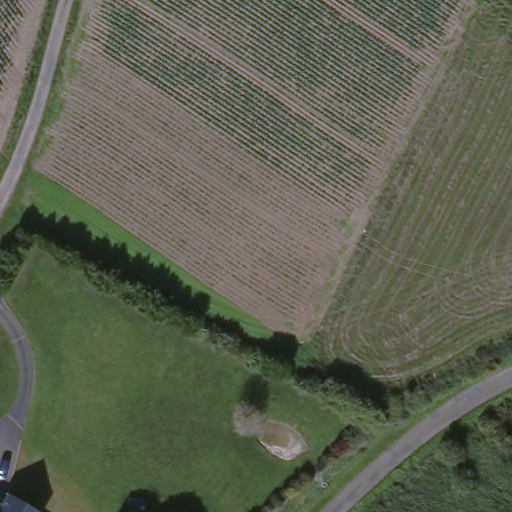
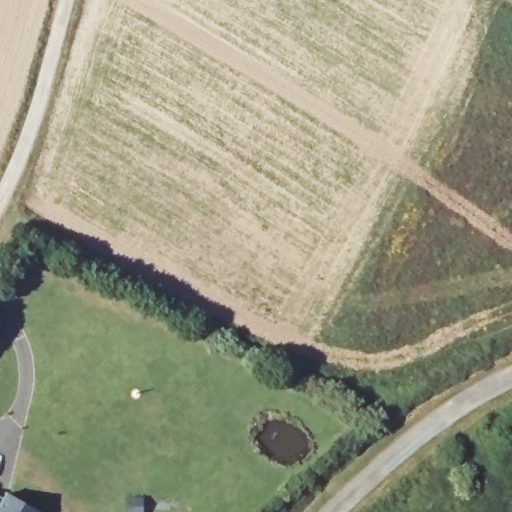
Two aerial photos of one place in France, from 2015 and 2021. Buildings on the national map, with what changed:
unchanged [(2,498),(6,492),(43,510),(42,512),(0,512),(0,496),(2,498)]

